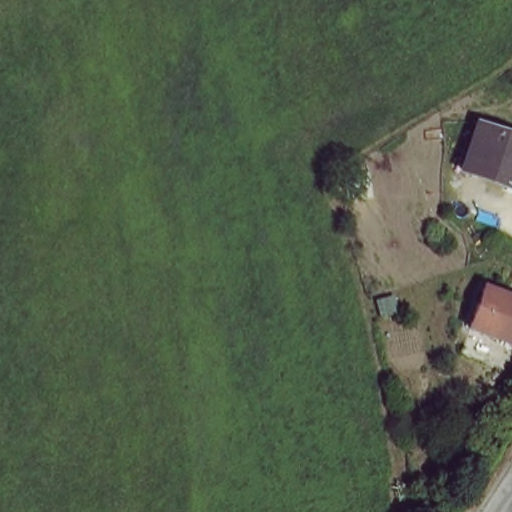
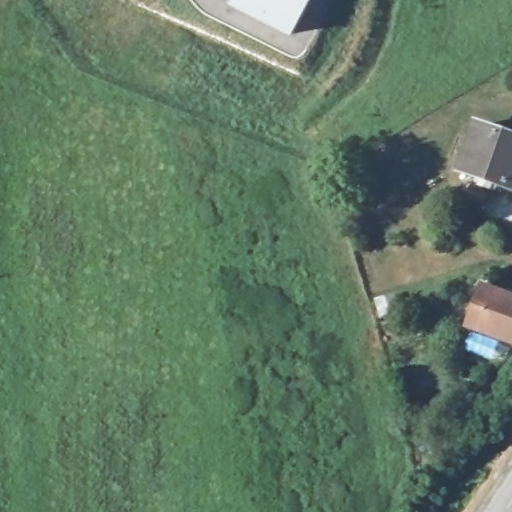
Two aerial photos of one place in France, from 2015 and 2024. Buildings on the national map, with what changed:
new [(230,8),(234,0),(312,0),(293,39),(230,8)]
unchanged [(492,185),(496,174),(468,166),(482,129),(512,139),(512,192),(492,185)]
unchanged [(469,325),(482,285),(512,295),(512,339),(469,325)]

